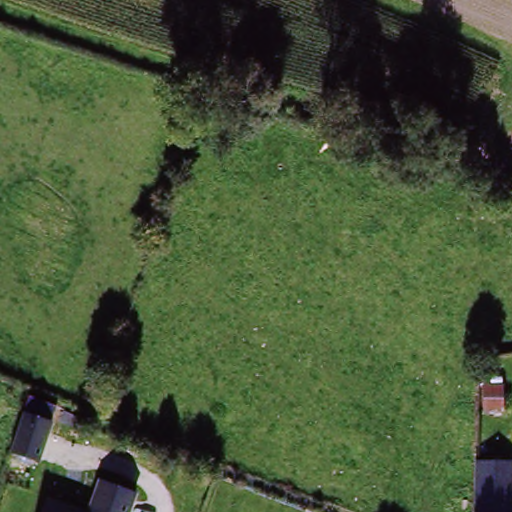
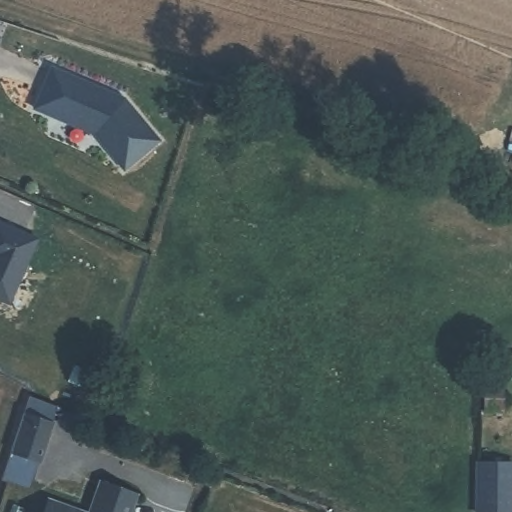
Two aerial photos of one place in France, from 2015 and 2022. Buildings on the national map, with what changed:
new [(126,101),(158,145),(123,171),(96,135),(37,106),(55,67),(126,101)]
new [(39,238),(11,302),(0,298),(0,221),(39,238)]
unchanged [(486,383),(505,384),(506,415),(487,415),(486,383)]
unchanged [(52,420),(40,462),(10,453),(22,411),(52,420)]
unchanged [(476,512),(476,458),(512,458),(512,512),(476,512)]
unchanged [(129,512),(87,512),(96,482),(135,494),(129,512)]
unchanged [(82,512),(40,512),(45,498),(82,512)]

